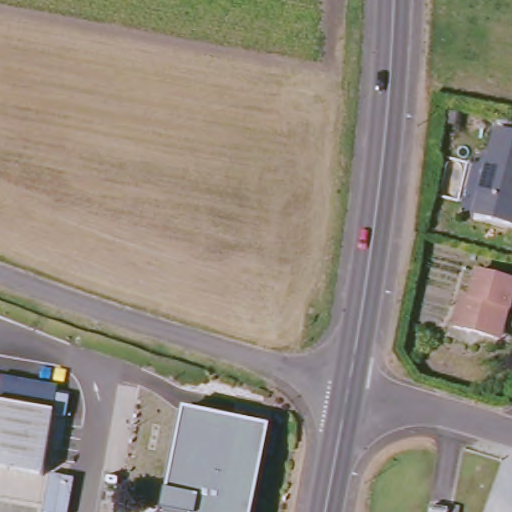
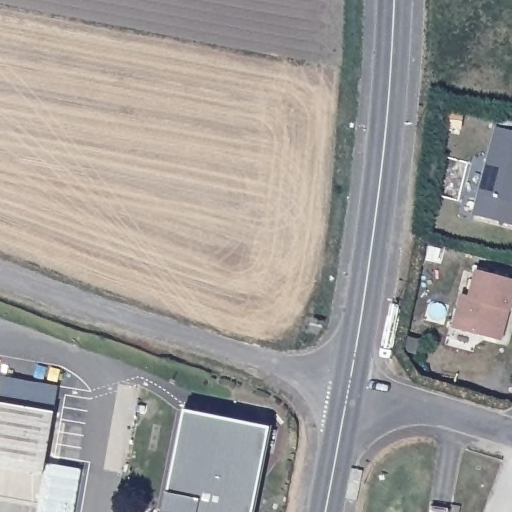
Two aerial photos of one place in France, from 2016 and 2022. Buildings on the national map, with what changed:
unchanged [(490,131),(512,137),(512,230),(470,221),(490,131)]
unchanged [(498,310),(492,343),(452,335),(458,300),(467,302),(472,276),(512,285),(512,290),(507,312),(498,310)]
unchanged [(43,478),(0,471),(0,378),(57,389),(75,398),(69,418),(83,420),(73,467),(50,461),(48,477),(77,483),(71,512),(42,512),(43,478)]
unchanged [(270,430),(254,512),(165,512),(163,511),(183,410),(270,430)]

